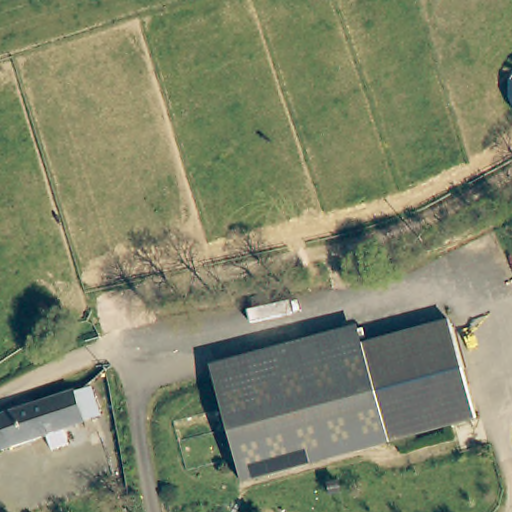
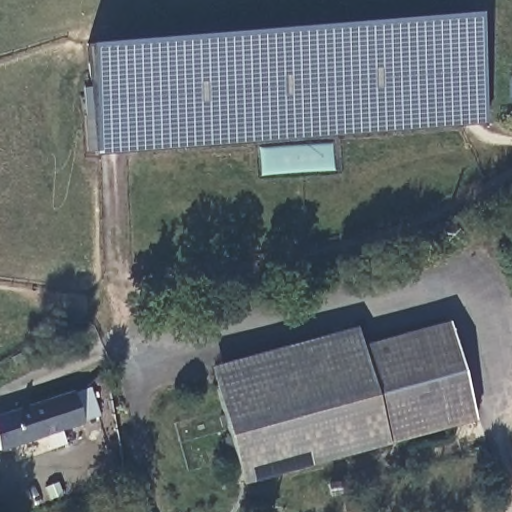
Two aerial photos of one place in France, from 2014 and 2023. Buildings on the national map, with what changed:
new [(90,41),(476,11),(485,123),(95,151),(90,41)]
unchanged [(381,445),(353,348),(441,322),(468,419),(381,445)]
unchanged [(354,452),(237,486),(209,389),(338,352),(353,348),(381,445),(354,452)]
unchanged [(72,391),(85,387),(93,416),(81,420),(4,445),(0,433),(0,415),(72,391)]

